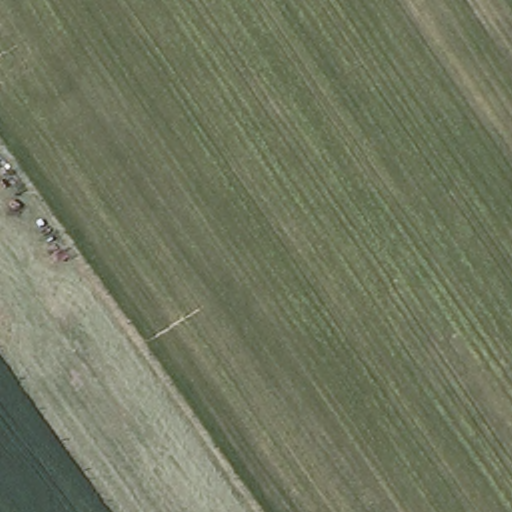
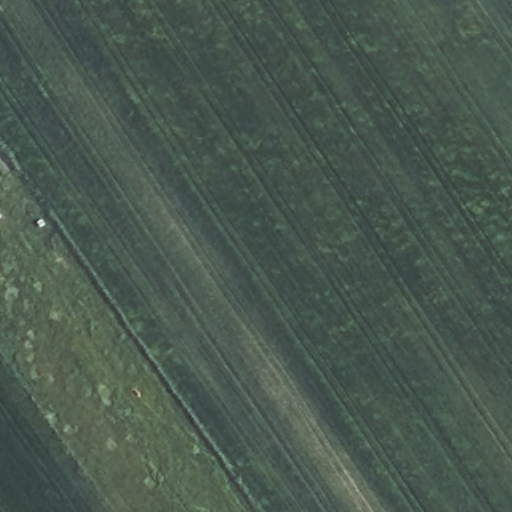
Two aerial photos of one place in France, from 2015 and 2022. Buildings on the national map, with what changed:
[]

